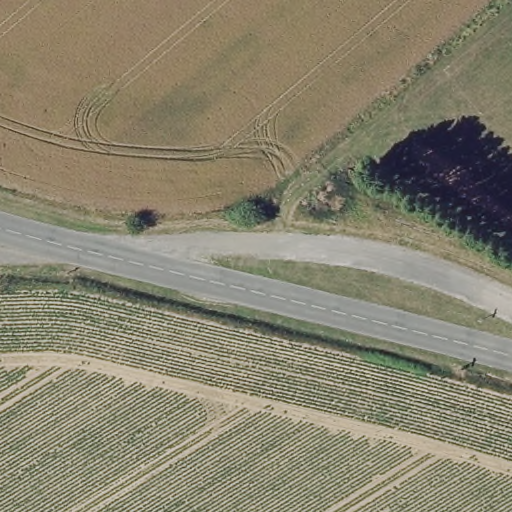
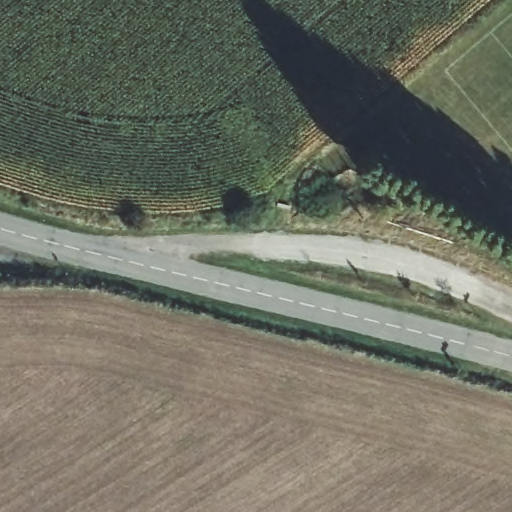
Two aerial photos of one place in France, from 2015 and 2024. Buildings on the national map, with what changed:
[]

